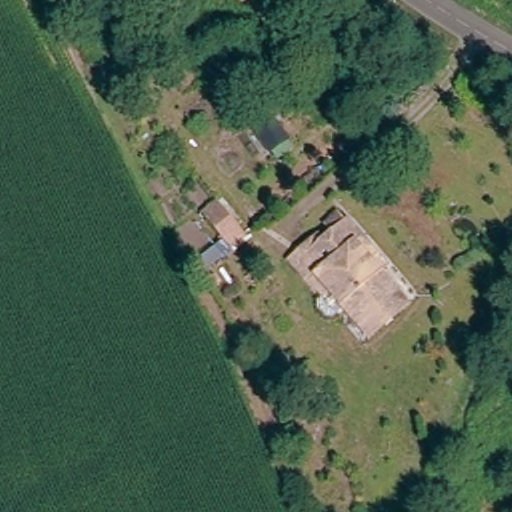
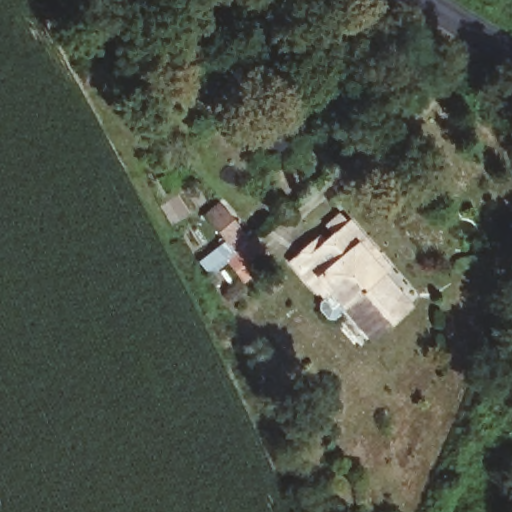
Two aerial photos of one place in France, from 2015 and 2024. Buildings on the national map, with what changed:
unchanged [(223,249),(205,230),(219,216),(237,237),(245,247),(232,259),(223,249)]
unchanged [(359,324),(341,298),(330,307),(320,293),(293,254),(306,243),(320,232),(326,241),(350,223),(374,255),(382,266),(376,271),(395,297),(403,308),(367,336),(359,324)]

